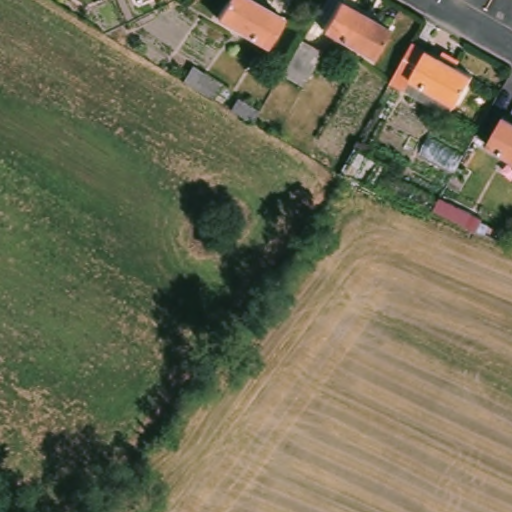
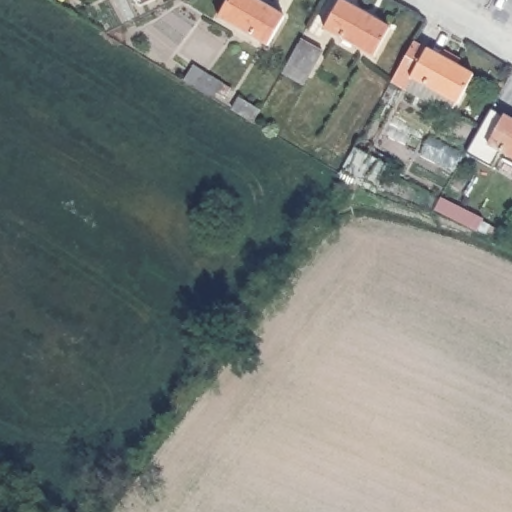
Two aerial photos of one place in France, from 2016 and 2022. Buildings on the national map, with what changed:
unchanged [(226,0),(252,0),(279,16),(263,46),(217,17),(226,0)]
unchanged [(343,1),(392,29),(376,56),(327,29),(343,1)]
unchanged [(409,35),(474,70),(451,112),(386,76),(409,35)]
unchanged [(512,111),(512,149),(485,134),(501,105),(512,111)]
unchanged [(377,192),(340,172),(356,146),(389,167),(377,192)]

